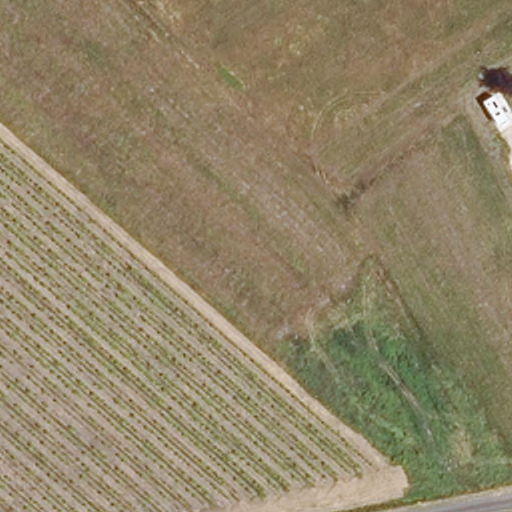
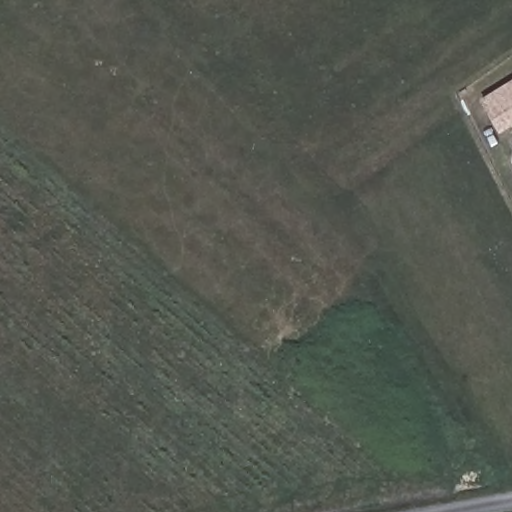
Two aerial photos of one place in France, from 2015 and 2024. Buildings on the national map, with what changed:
new [(481,101),(512,82),(512,128),(501,134),(481,101)]

